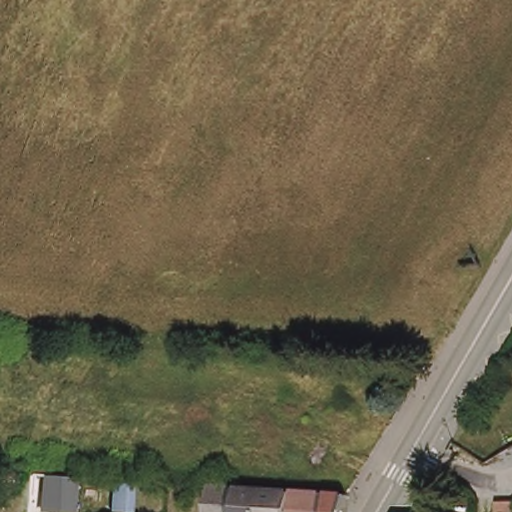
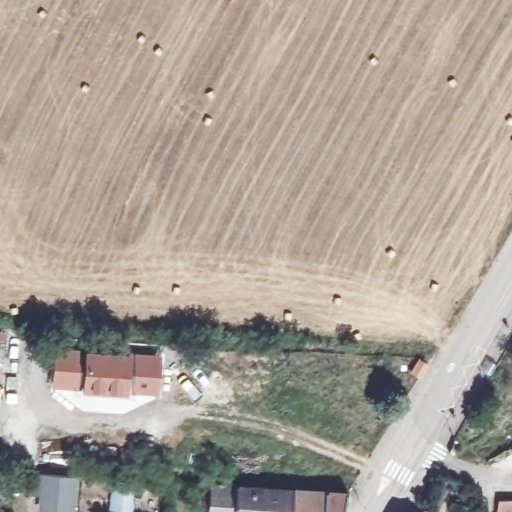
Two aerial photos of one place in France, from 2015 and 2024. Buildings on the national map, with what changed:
new [(53,388),(55,347),(162,355),(159,395),(53,388)]
unchanged [(48,476),(74,476),(74,512),(44,511),(44,476),(48,476)]
unchanged [(134,512),(115,512),(115,483),(134,485),(134,512)]
unchanged [(207,512),(208,483),(237,485),(237,512),(207,512)]
unchanged [(263,512),(237,512),(237,485),(263,486),(263,512)]
unchanged [(290,487),(290,512),(263,512),(263,486),(269,485),(290,487)]
unchanged [(290,512),(290,487),(320,489),(347,490),(345,512),(290,512)]

